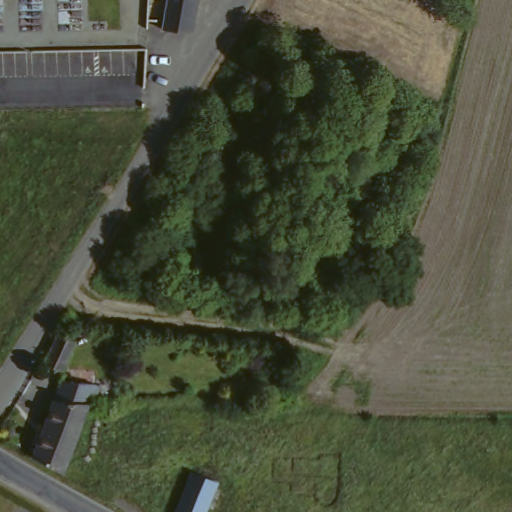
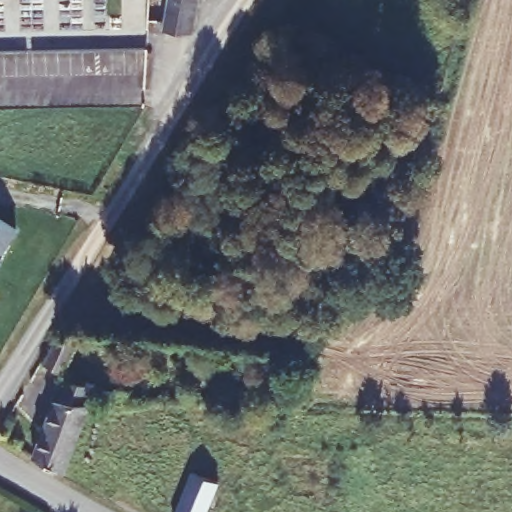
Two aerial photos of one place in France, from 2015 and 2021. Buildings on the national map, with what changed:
unchanged [(161,28),(166,0),(196,0),(191,31),(161,28)]
new [(16,229),(2,255),(4,256),(0,262),(0,218),(16,229)]
unchanged [(75,342),(61,372),(44,364),(58,335),(61,336),(75,342)]
unchanged [(58,385),(89,390),(81,415),(61,472),(33,457),(53,401),(58,385)]
unchanged [(189,470),(221,481),(210,512),(175,512),(189,470)]

